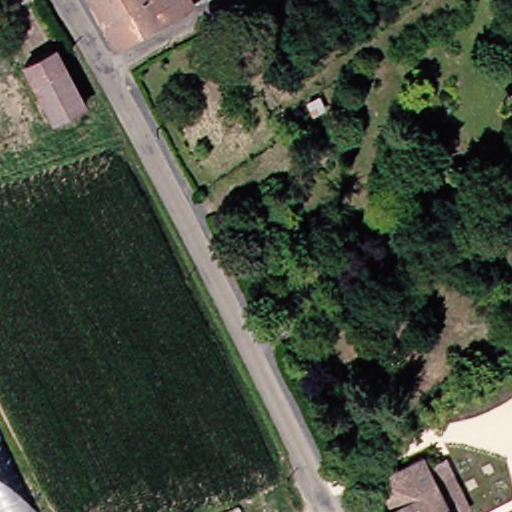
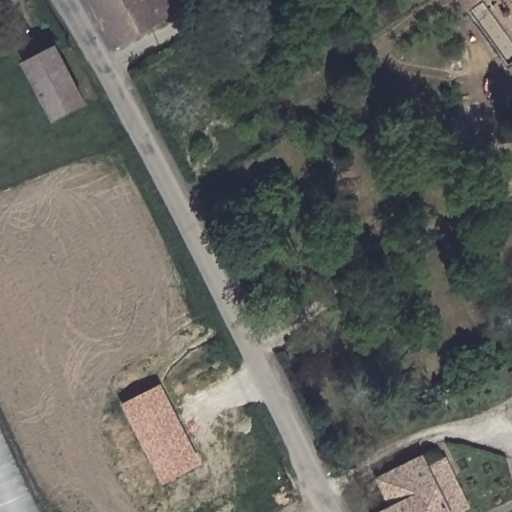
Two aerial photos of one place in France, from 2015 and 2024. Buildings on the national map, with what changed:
unchanged [(116,45),(93,0),(197,0),(116,45)]
unchanged [(34,66),(64,51),(85,91),(55,106),(34,66)]
new [(162,483),(122,404),(162,384),(202,463),(162,483)]
unchanged [(40,512),(0,512),(0,423),(40,512)]
unchanged [(374,475),(429,445),(434,455),(439,451),(469,507),(460,512),(374,512),(389,503),(374,475)]

